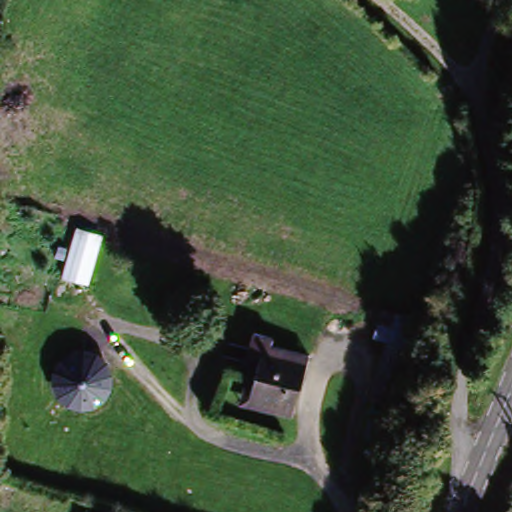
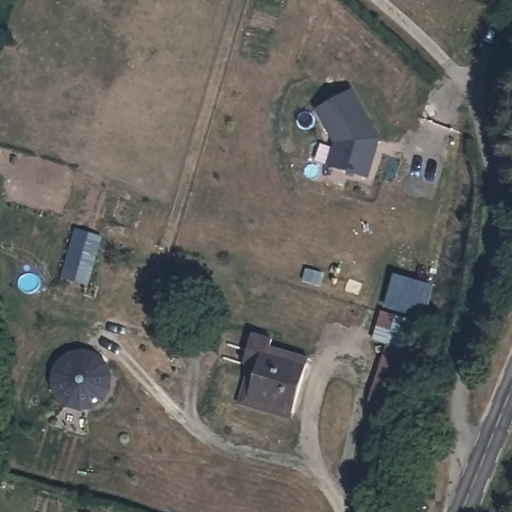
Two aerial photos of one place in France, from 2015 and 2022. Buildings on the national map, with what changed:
new [(352,82),(378,134),(365,175),(325,162),(334,135),(317,100),(352,82)]
unchanged [(97,234),(82,278),(60,271),(75,227),(97,234)]
unchanged [(378,402),(396,346),(380,341),(389,313),(405,318),(422,324),(431,327),(405,410),(378,402)]
unchanged [(238,408),(246,382),(250,369),(243,367),(247,355),(252,340),(270,345),(266,359),(303,371),(288,415),(286,424),(238,408)]
unchanged [(53,371),(62,357),(72,348),(82,347),(95,351),(107,361),(113,376),(112,388),(105,401),(95,407),(82,409),(68,407),(58,399),(52,382),(53,371)]

